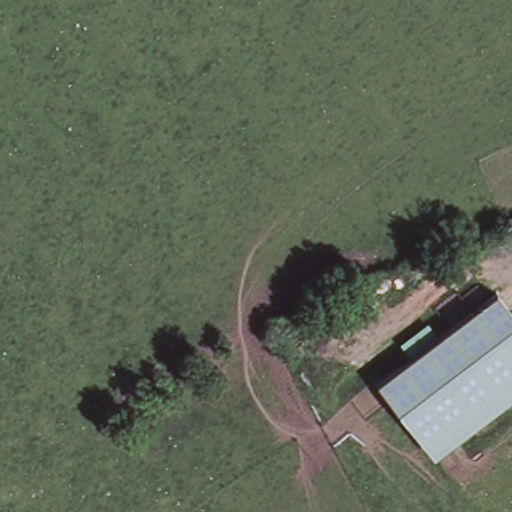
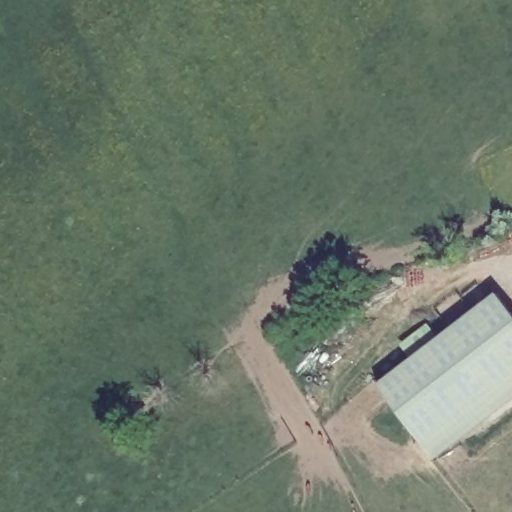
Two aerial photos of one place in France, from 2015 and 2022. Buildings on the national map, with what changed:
unchanged [(423,350),(506,298),(512,309),(512,404),(466,432),(426,457),(414,437),(377,378),(423,350)]

